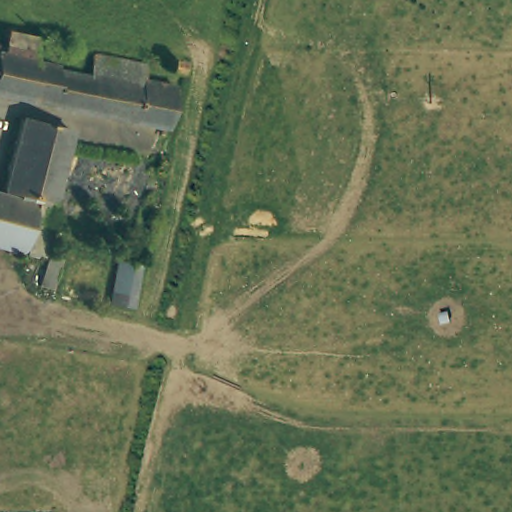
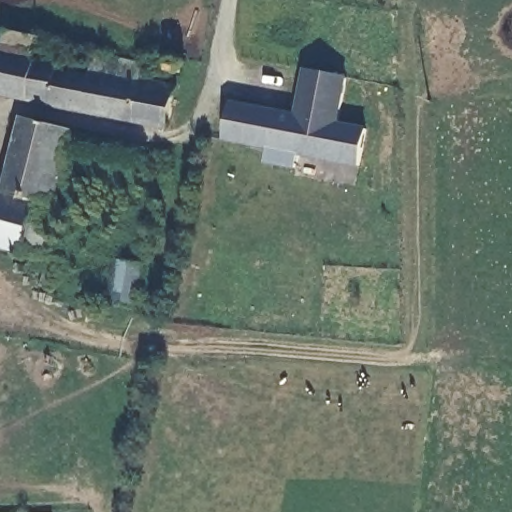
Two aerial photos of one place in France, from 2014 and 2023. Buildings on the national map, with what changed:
unchanged [(2,39),(4,30),(40,37),(36,59),(62,65),(61,67),(82,72),(90,73),(96,50),(122,56),(147,62),(143,77),(162,81),(177,84),(167,127),(0,92),(0,45),(1,40),(2,39)]
new [(297,114),(305,69),(348,78),(340,123),(368,128),(361,168),(300,157),(297,170),(266,164),(268,151),(224,141),(232,102),(297,114)]
unchanged [(31,191),(0,183),(0,181),(17,114),(67,126),(63,140),(51,196),(31,191)]
unchanged [(17,250),(0,245),(0,190),(29,198),(17,250)]
unchanged [(50,214),(44,237),(41,254),(17,250),(29,198),(31,191),(51,196),(50,214)]
unchanged [(119,275),(141,281),(131,323),(109,317),(119,275)]

